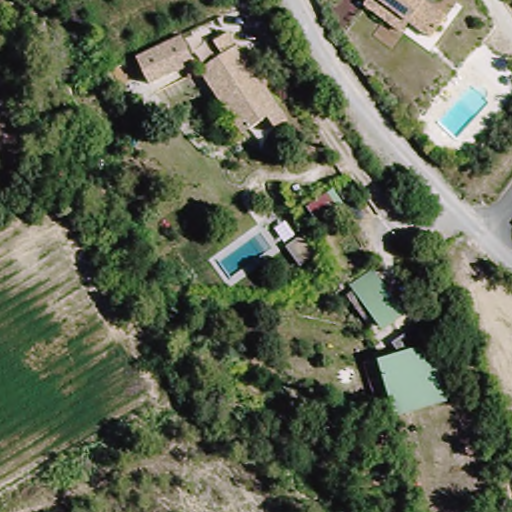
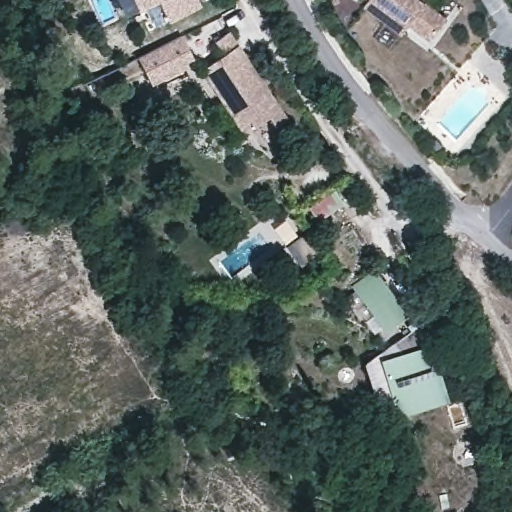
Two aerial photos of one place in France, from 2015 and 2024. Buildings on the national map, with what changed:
new [(199,7),(167,23),(157,3),(138,13),(131,0),(196,0),(199,7)]
unchanged [(369,1),(369,0),(435,0),(453,15),(437,35),(420,24),(413,33),(391,16),(369,1)]
unchanged [(222,105),(198,71),(221,54),(213,41),(226,32),(286,121),(274,131),(266,119),(249,130),(241,135),(222,105)]
unchanged [(181,37),(194,64),(150,86),(136,59),(181,37)]
unchanged [(376,267),(408,311),(382,329),(349,286),(376,267)]
unchanged [(430,409),(402,419),(386,375),(398,371),(388,361),(397,355),(421,338),(437,359),(449,389),(454,401),(430,409)]

